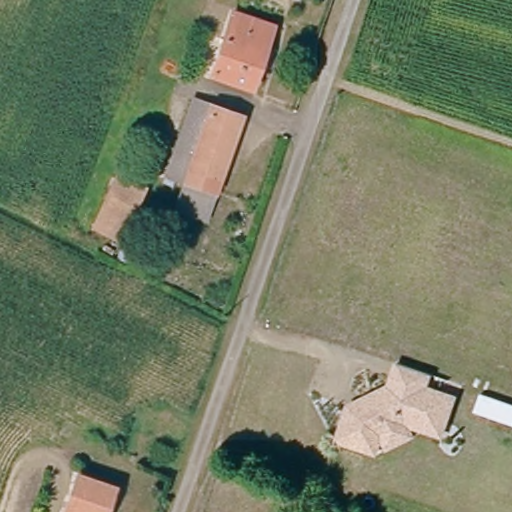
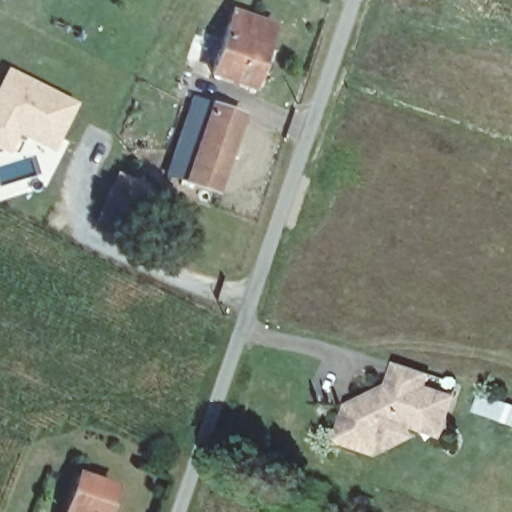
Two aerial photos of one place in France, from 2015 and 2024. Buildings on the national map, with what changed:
unchanged [(232,14),(269,26),(249,88),(211,75),(232,14)]
new [(77,103),(50,153),(15,136),(4,154),(0,152),(0,78),(6,66),(77,103)]
unchanged [(205,218),(175,208),(185,182),(167,177),(193,101),(240,116),(205,218)]
unchanged [(115,182),(139,192),(118,239),(95,229),(115,182)]
unchanged [(385,447),(378,434),(372,452),(335,440),(345,413),(346,408),(385,389),(393,367),(393,366),(432,379),(432,380),(428,391),(450,399),(438,435),(402,423),(408,436),(385,447)]
unchanged [(86,512),(69,512),(81,484),(95,489),(86,512)]
unchanged [(95,489),(120,499),(114,512),(86,512),(95,489)]

